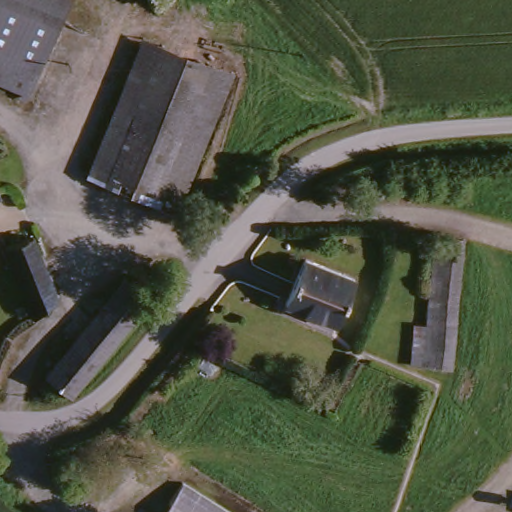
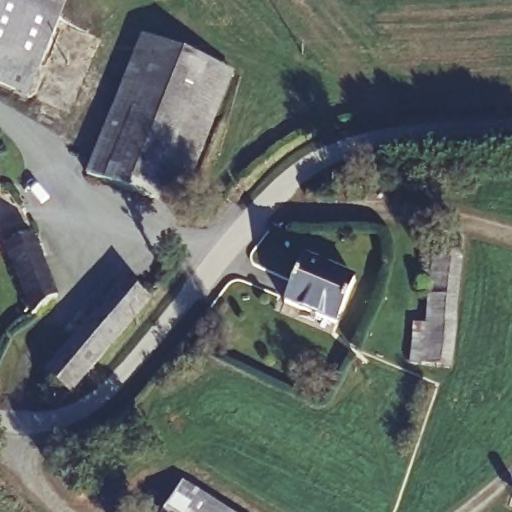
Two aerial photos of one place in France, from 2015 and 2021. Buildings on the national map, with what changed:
unchanged [(34,79),(0,63),(0,0),(72,0),(34,79)]
unchanged [(143,62),(133,60),(142,40),(218,74),(231,79),(223,99),(143,62)]
unchanged [(214,124),(123,86),(133,60),(143,62),(223,99),(214,124)]
unchanged [(0,93),(0,63),(34,79),(24,104),(2,94),(0,93)]
unchanged [(214,124),(174,215),(86,177),(123,86),(214,124)]
unchanged [(1,202),(0,202),(0,201),(1,202)]
unchanged [(28,239),(58,309),(30,321),(1,251),(28,239)]
unchanged [(422,372),(428,242),(457,244),(449,373),(422,372)]
unchanged [(332,322),(283,303),(302,259),(351,281),(332,322)]
unchanged [(71,400),(44,380),(108,305),(92,291),(109,272),(152,305),(71,400)]
unchanged [(210,512),(168,512),(179,493),(210,512)]

